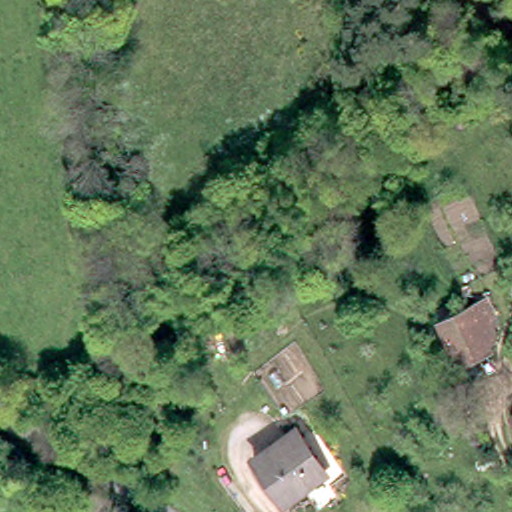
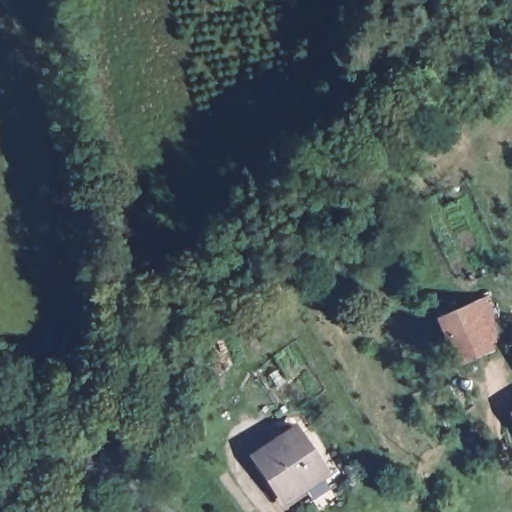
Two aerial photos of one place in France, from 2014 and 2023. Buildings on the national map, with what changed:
unchanged [(427,313),(475,293),(490,347),(450,365),(427,313)]
unchanged [(512,406),(512,418),(507,410),(512,406)]
unchanged [(286,435),(316,475),(280,501),(252,457),(286,435)]

